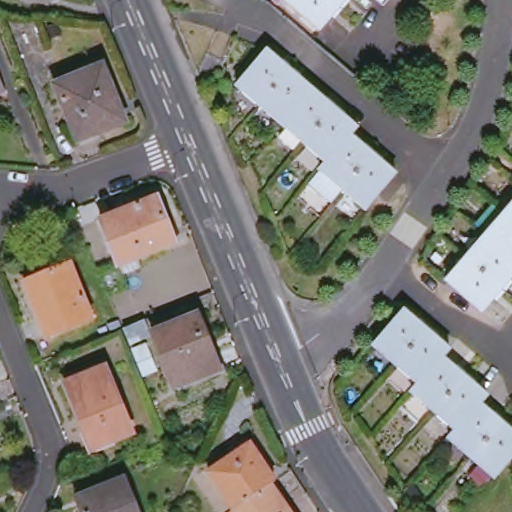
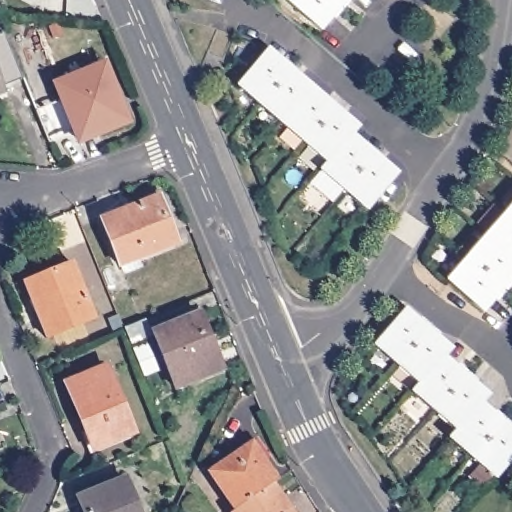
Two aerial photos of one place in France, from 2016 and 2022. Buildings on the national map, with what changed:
unchanged [(291,0),(352,0),(326,30),(291,0)]
unchanged [(358,129),(351,135),(396,175),(366,210),(343,190),(335,200),(332,204),(310,184),(321,171),(327,163),(238,86),(268,51),(358,129)]
unchanged [(112,91),(103,94),(116,126),(80,141),(57,86),(103,68),(112,91)]
unchanged [(0,94),(0,75),(6,91),(0,94)]
unchanged [(176,245),(120,266),(102,220),(157,198),(176,245)]
unchanged [(482,313),(447,281),(512,207),(512,278),(482,313)]
unchanged [(71,264),(93,319),(47,338),(25,283),(71,264)]
unchanged [(457,430),(435,412),(413,392),(419,385),(397,366),(375,346),(406,311),(451,351),(445,358),(488,397),(482,405),(512,431),(512,459),(495,479),(471,457),(449,438),(457,430)]
unchanged [(222,370),(175,389),(153,334),(200,315),(222,370)]
unchanged [(131,432),(92,449),(66,385),(105,368),(131,432)]
unchanged [(210,473),(251,445),(276,482),(272,485),(236,510),(210,473)]
unchanged [(137,512),(95,512),(87,495),(123,480),(137,512)]
unchanged [(277,504),(283,512),(233,512),(236,510),(272,485),(283,500),(277,504)]

